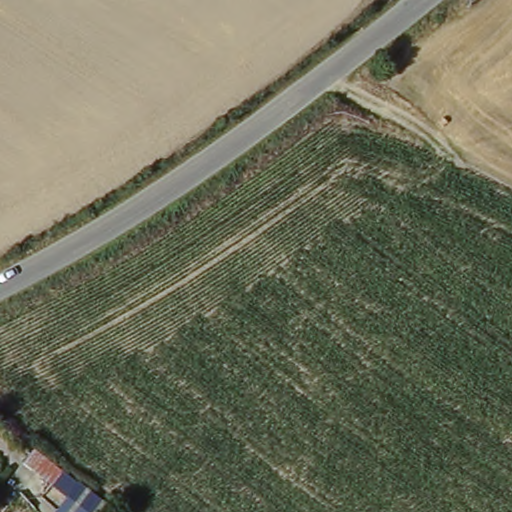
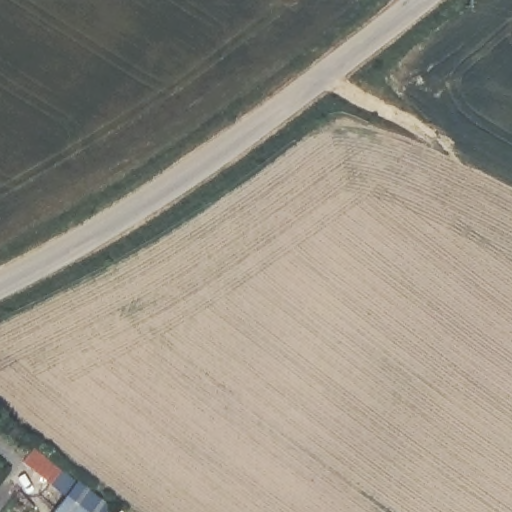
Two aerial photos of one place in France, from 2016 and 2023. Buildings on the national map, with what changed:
unchanged [(23,463),(32,450),(61,472),(51,484),(32,470),(23,463)]

